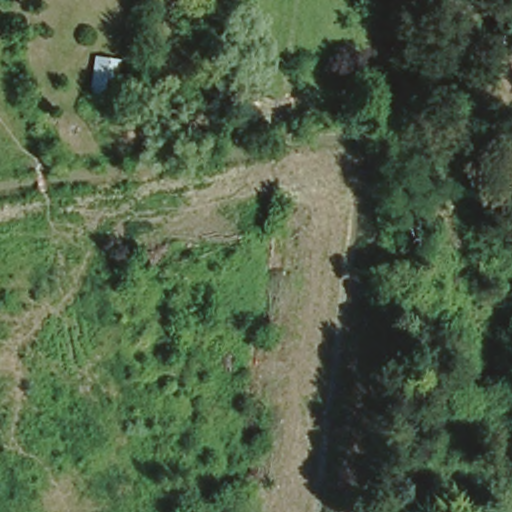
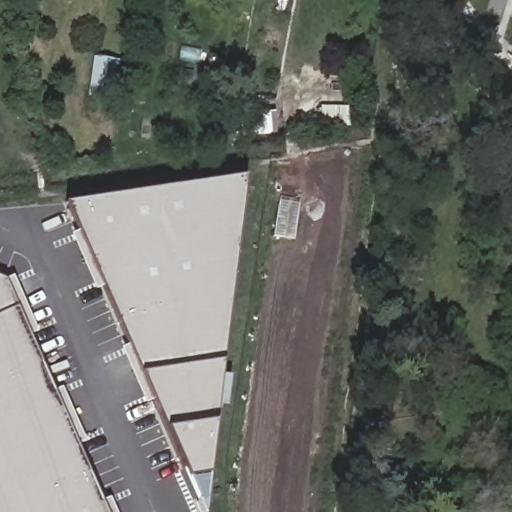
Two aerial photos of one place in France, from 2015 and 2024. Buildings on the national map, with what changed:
unchanged [(119,54),(114,89),(92,86),(97,51),(119,54)]
unchanged [(266,131),(255,133),(254,124),(265,122),(266,131)]
new [(185,465),(67,198),(249,171),(211,462),(205,511),(185,465)]
new [(111,512),(0,512),(0,270),(7,273),(111,512)]

